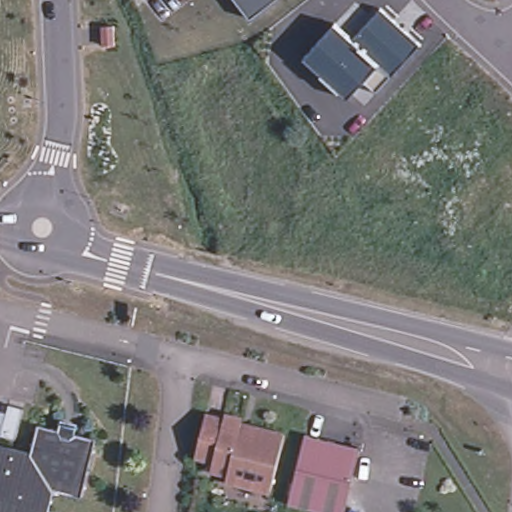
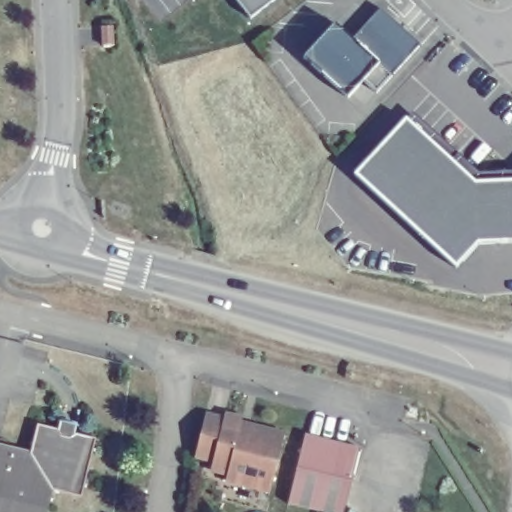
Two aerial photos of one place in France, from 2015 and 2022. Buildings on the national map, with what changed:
unchanged [(236,0),(274,0),(250,19),(236,0)]
unchanged [(420,45),(377,92),(364,83),(347,100),(305,59),(337,25),(355,39),(380,9),(420,45)]
unchanged [(105,19),(109,19),(110,19),(110,21),(110,31),(110,37),(100,38),(99,20),(105,19)]
new [(355,176),(407,120),(474,183),(512,182),(512,242),(477,244),(455,268),(355,176)]
unchanged [(225,482),(227,475),(210,470),(212,460),(195,455),(207,416),(226,422),(227,417),(238,420),(240,425),(238,434),(250,437),(251,430),(284,439),(267,495),(225,482)]
unchanged [(39,424),(56,427),(59,418),(80,423),(77,432),(98,436),(81,495),(50,489),(0,478),(0,444),(31,450),(39,424)]
unchanged [(360,456),(344,512),(295,512),(288,510),(308,441),(360,456)]
unchanged [(44,512),(0,512),(0,478),(50,489),(44,512)]

